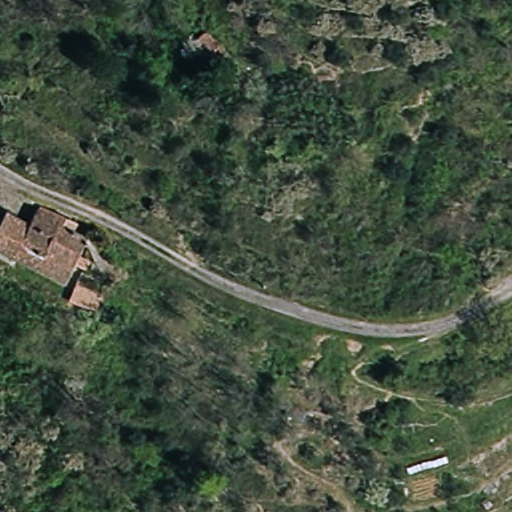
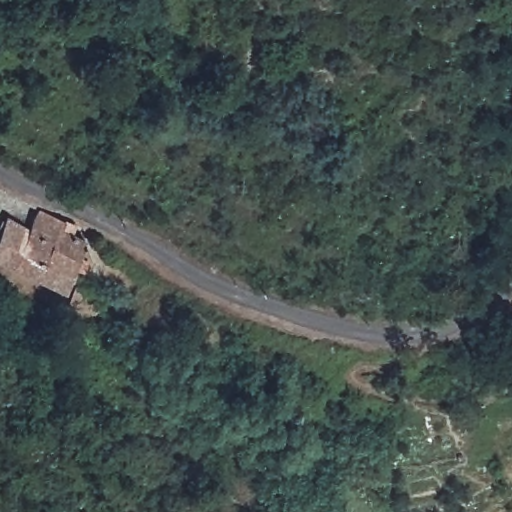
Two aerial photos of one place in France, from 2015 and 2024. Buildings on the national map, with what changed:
unchanged [(216,73),(190,47),(206,32),(230,60),(216,73)]
unchanged [(85,247),(74,280),(0,255),(0,233),(3,225),(20,230),(27,214),(58,225),(56,237),(85,247)]

